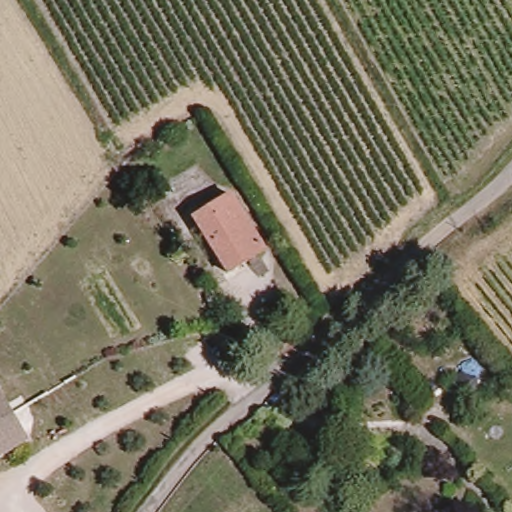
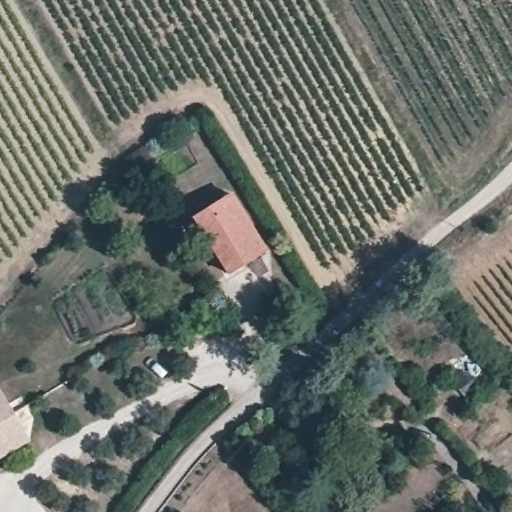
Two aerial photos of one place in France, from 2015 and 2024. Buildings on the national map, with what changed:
unchanged [(206,194),(201,187),(209,182),(214,190),(206,194)]
unchanged [(235,269),(226,255),(199,213),(236,190),(271,245),(235,269)]
unchanged [(336,383),(324,397),(310,384),(323,371),(336,383)]
unchanged [(0,457),(0,400),(23,443),(0,457)]

